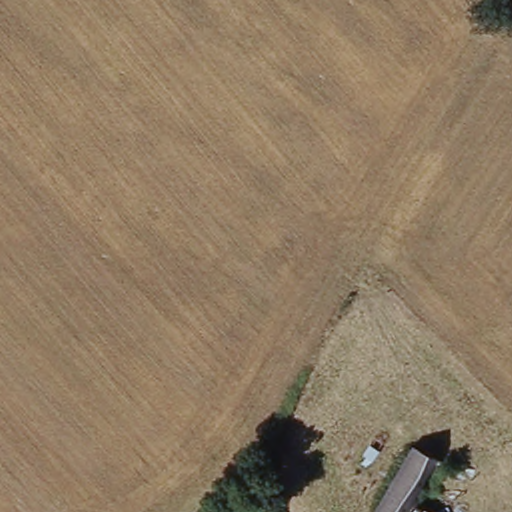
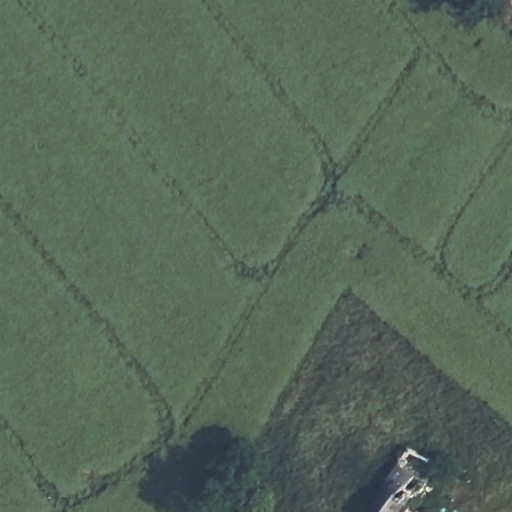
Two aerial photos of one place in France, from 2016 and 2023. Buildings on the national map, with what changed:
unchanged [(414,512),(382,512),(416,448),(442,462),(414,512)]
unchanged [(462,500),(455,512),(414,512),(428,487),(462,500)]

